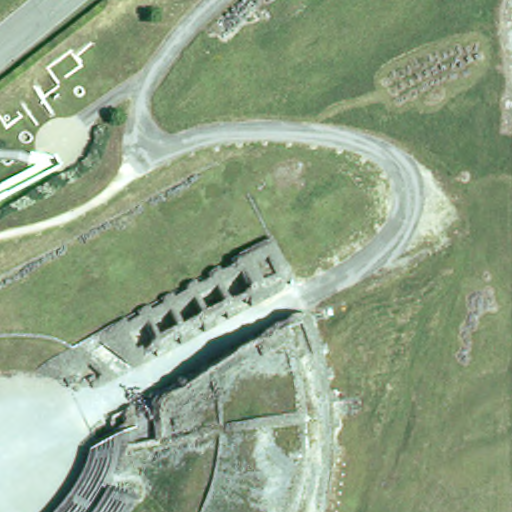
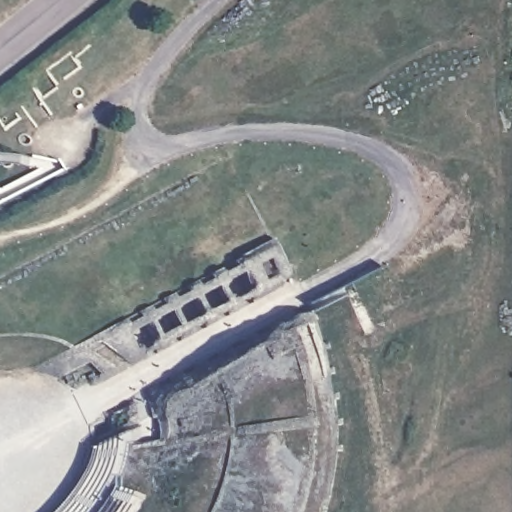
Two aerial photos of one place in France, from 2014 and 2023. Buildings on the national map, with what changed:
unchanged [(325,475),(313,512),(47,512),(69,494),(90,458),(93,428),(159,409),(160,395),(255,342),(256,328),(303,320),(324,396),(325,475)]

